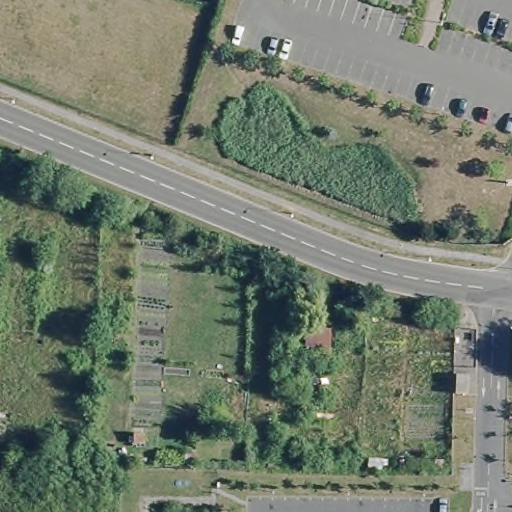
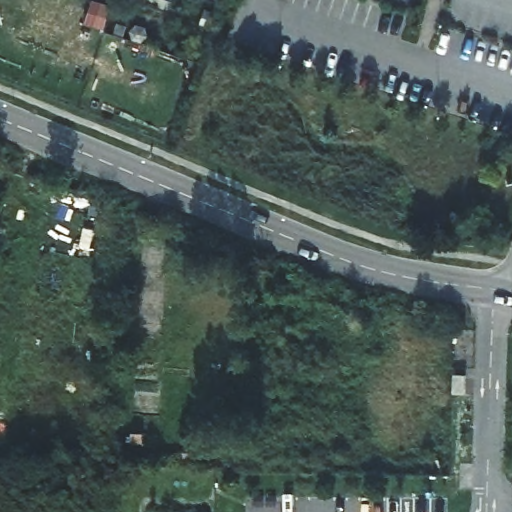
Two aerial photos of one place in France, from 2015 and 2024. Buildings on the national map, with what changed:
unchanged [(330,331),(329,355),(285,353),(285,331),(330,331)]

